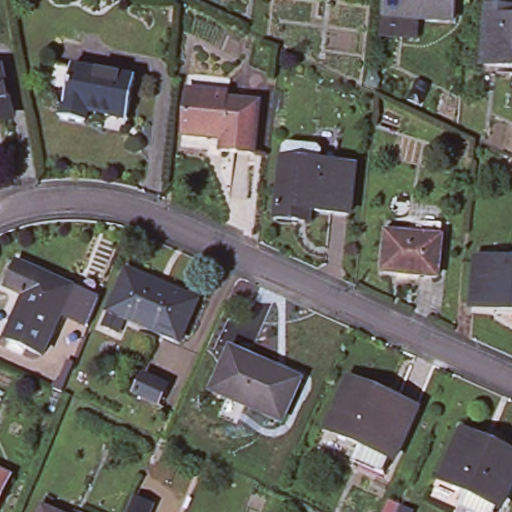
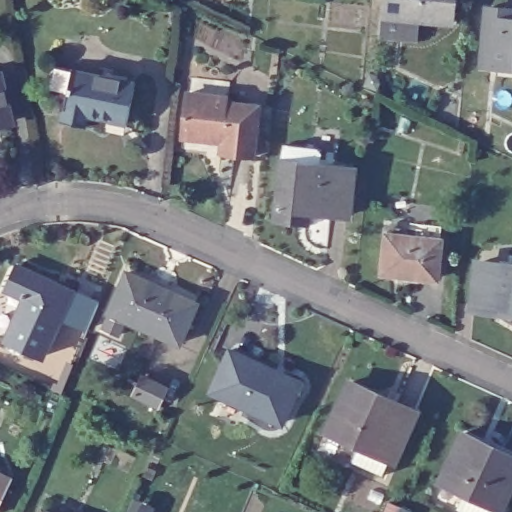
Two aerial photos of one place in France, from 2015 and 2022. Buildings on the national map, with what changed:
unchanged [(382,15),(383,0),(449,0),(448,20),(416,17),(415,37),(381,34),(382,15)]
unchanged [(512,8),(512,65),(487,62),(492,7),(512,8)]
unchanged [(123,124),(82,113),(79,124),(58,118),(67,88),(51,83),(56,62),(72,66),(135,83),(123,124)]
unchanged [(255,105),(250,156),(218,152),(220,140),(181,136),(185,93),(186,77),(227,81),(226,97),(225,102),(255,105)]
unchanged [(0,116),(0,84),(7,114),(0,116)]
unchanged [(345,221),(307,217),(306,227),(272,224),(278,168),(280,152),(318,156),(316,172),(350,176),(345,221)]
unchanged [(417,227),(437,229),(436,242),(433,279),(383,274),(386,236),(415,239),(417,227)]
unchanged [(512,266),(512,310),(480,308),(482,263),(512,266)]
unchanged [(91,330),(80,324),(61,316),(42,356),(9,340),(30,298),(14,290),(25,268),(73,291),(91,299),(103,305),(91,330)]
unchanged [(100,328),(107,314),(126,271),(193,301),(175,344),(122,321),(116,336),(100,328)]
unchanged [(301,375),(281,417),(213,386),(233,344),(301,375)]
unchanged [(167,375),(159,395),(138,386),(145,366),(167,375)]
unchanged [(350,457),(356,443),(328,431),(350,384),(413,413),(392,459),(388,457),(382,471),(350,457)]
unchanged [(468,508),(474,494),(447,482),(470,434),(512,453),(512,497),(507,508),(501,506),(499,512),(476,512),(468,508)]
unchanged [(0,491),(0,474),(6,476),(0,491)]

